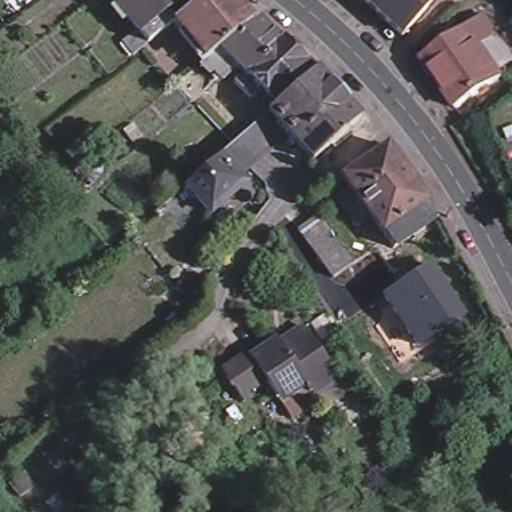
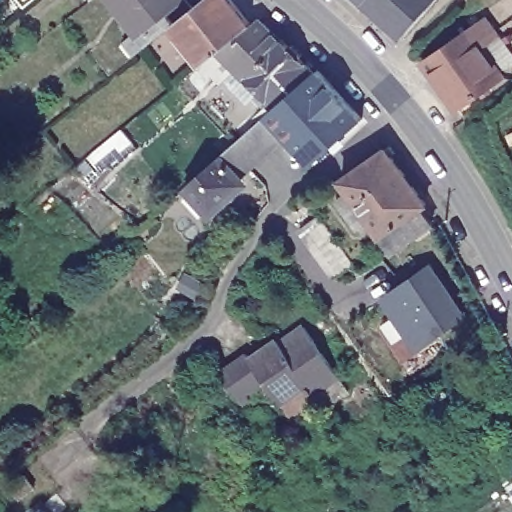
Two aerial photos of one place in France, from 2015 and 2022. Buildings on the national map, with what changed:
unchanged [(25,5),(21,0),(32,0),(25,5)]
unchanged [(125,16),(111,0),(145,0),(125,16)]
unchanged [(119,42),(135,30),(125,16),(145,0),(189,0),(193,5),(173,20),(130,55),(119,42)]
unchanged [(183,182),(219,151),(240,132),(256,120),(268,109),(275,103),(268,96),(255,81),(249,76),(229,56),(215,69),(210,64),(209,66),(205,62),(217,50),(204,60),(173,20),(193,5),(199,0),(234,0),(252,22),(260,16),(282,40),(284,39),(289,45),(292,41),(296,46),(302,52),(299,55),(305,60),(314,70),(319,65),(360,115),(310,159),(309,157),(305,160),(289,142),(294,139),(282,126),(280,135),(270,144),(260,153),(238,172),(240,174),(237,185),(208,210),(183,182)]
unchanged [(400,31),(367,0),(428,0),(400,31)]
unchanged [(430,75),(435,71),(425,57),(470,25),(488,12),(500,30),(483,42),(505,74),(460,106),(450,91),(445,95),(430,75)]
unchanged [(395,236),(385,220),(383,221),(373,207),(359,217),(337,187),(352,176),(344,165),(389,132),(427,190),(422,193),(434,209),(395,236)]
unchanged [(299,229),(317,216),(350,262),(332,276),(299,229)]
unchanged [(382,293),(430,262),(465,313),(416,346),(382,293)]
unchanged [(290,421),(279,404),(264,382),(249,360),(250,360),(277,341),(279,346),(303,329),(338,379),(312,396),(309,399),(314,405),(290,421)]
unchanged [(245,395),(249,400),(241,405),(220,373),(246,355),(250,360),(249,360),(264,382),(245,395)]
unchanged [(40,487),(26,498),(17,487),(30,476),(40,487)]
unchanged [(49,500),(55,507),(59,512),(37,512),(36,510),(49,500)]

